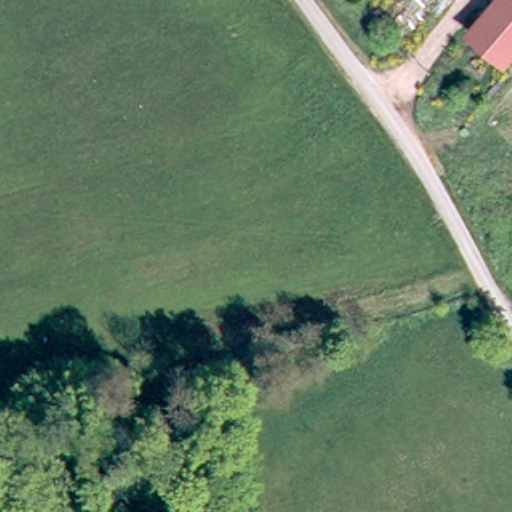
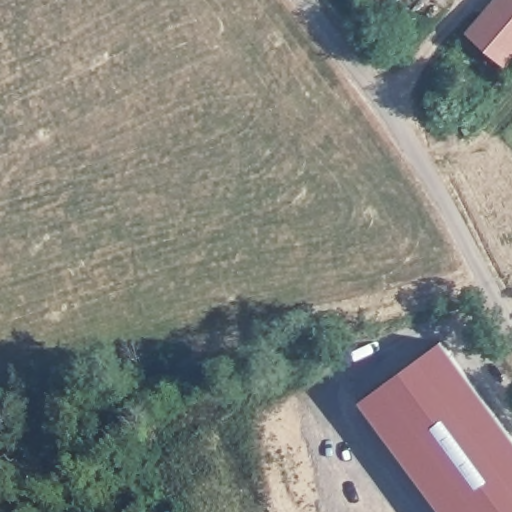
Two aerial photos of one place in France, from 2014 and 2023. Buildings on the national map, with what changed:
unchanged [(469,36),(497,0),(512,0),(512,56),(504,66),(469,36)]
new [(512,439),(512,512),(442,512),(360,401),(440,342),(512,439)]

